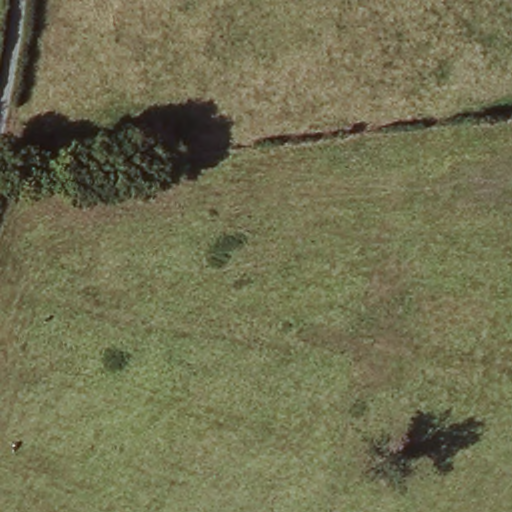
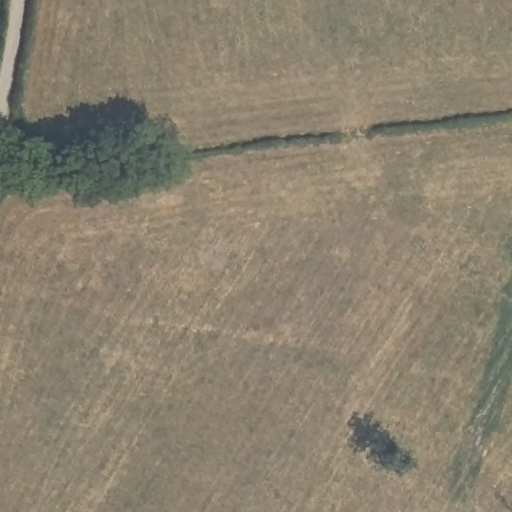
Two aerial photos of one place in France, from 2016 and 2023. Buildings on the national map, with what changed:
[]

